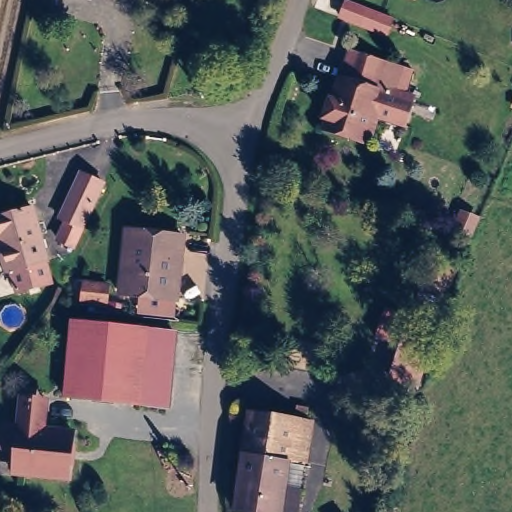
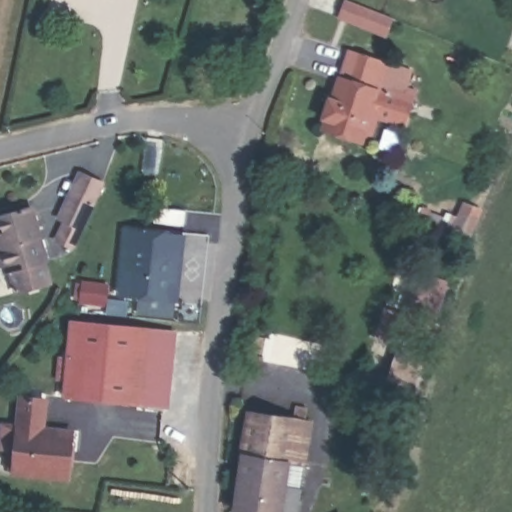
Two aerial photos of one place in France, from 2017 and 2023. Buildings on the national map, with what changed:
unchanged [(321,120),(323,113),(320,112),(325,97),(331,99),(334,86),(338,87),(341,80),(337,78),(347,50),(387,64),(380,83),(375,81),(372,88),(379,90),(381,85),(409,96),(407,101),(398,124),(372,115),(364,136),(355,133),(321,120)]
unchanged [(76,245),(61,237),(70,217),(62,214),(81,169),(103,179),(76,245)]
unchanged [(50,261),(55,282),(21,291),(15,270),(13,271),(4,236),(0,238),(0,215),(37,205),(52,260),(50,261)]
unchanged [(175,295),(117,291),(123,227),(180,232),(175,295)]
unchanged [(168,399),(66,391),(71,316),(173,324),(168,399)]
unchanged [(14,442),(20,389),(34,390),(46,391),(45,405),(43,420),(71,423),(67,472),(20,468),(12,467),(14,442)]
unchanged [(238,490),(234,490),(237,474),(242,475),(256,412),(296,421),(299,409),(309,411),(308,424),(298,467),(304,469),(299,490),(294,512),(242,512),(234,510),(238,490)]

